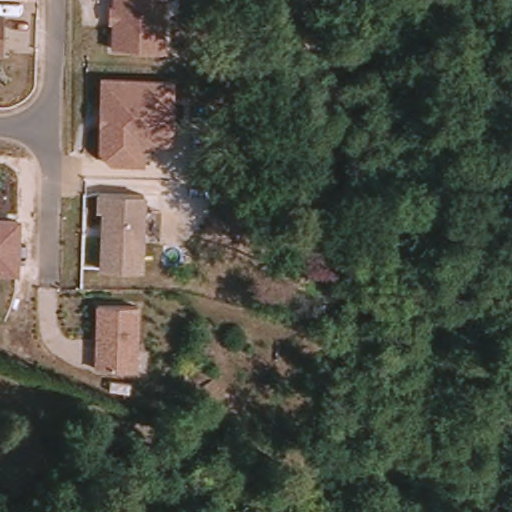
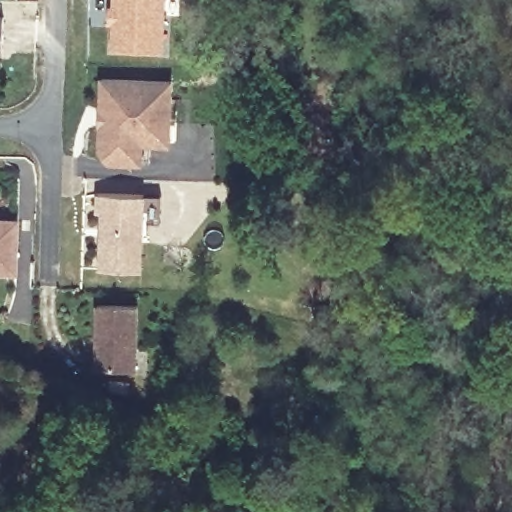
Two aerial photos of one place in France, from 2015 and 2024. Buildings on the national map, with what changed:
unchanged [(109,20),(109,4),(113,1),(113,0),(170,0),(169,48),(112,48),(113,21),(109,20)]
unchanged [(0,51),(0,17),(2,17),(0,51)]
unchanged [(110,161),(98,146),(100,76),(179,78),(178,143),(145,144),(144,164),(110,161)]
unchanged [(147,193),(147,269),(102,269),(103,213),(97,212),(97,194),(147,193)]
unchanged [(18,274),(0,273),(0,216),(19,216),(18,274)]
unchanged [(141,304),(139,369),(94,367),(96,304),(141,304)]

